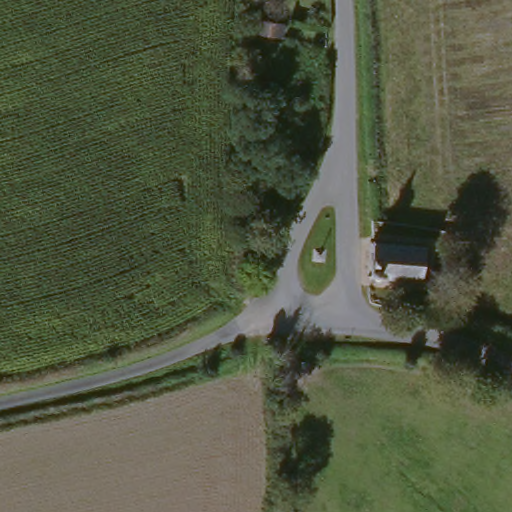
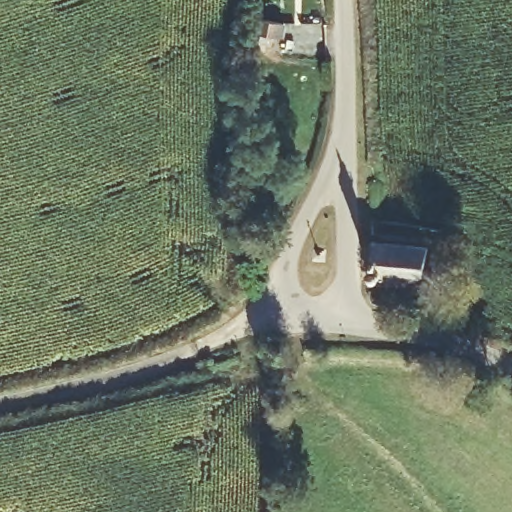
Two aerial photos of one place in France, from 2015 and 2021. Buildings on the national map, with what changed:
unchanged [(268,40),(269,24),(299,26),(296,42),(268,40)]
unchanged [(420,251),(421,284),(366,285),(366,254),(420,251)]

